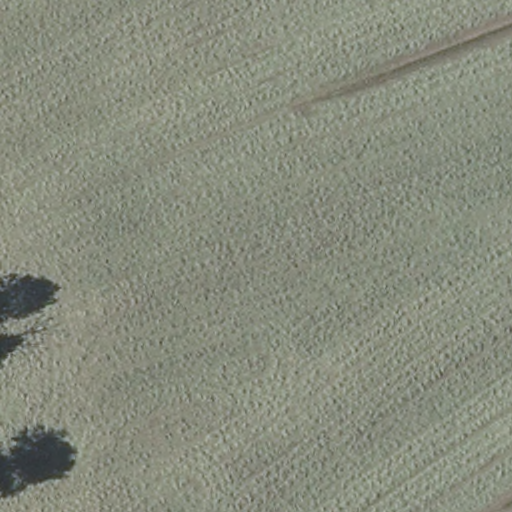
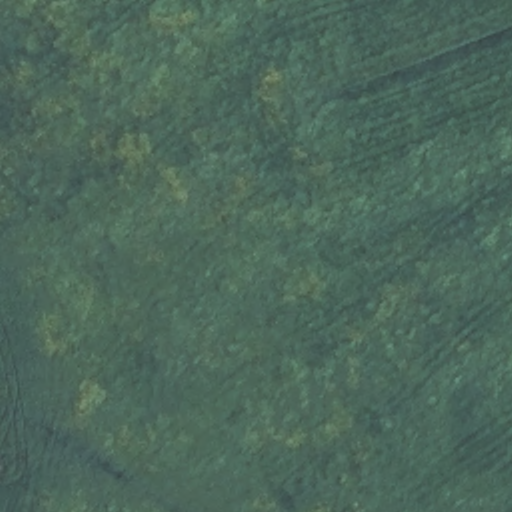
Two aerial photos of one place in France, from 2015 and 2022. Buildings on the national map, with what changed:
[]

